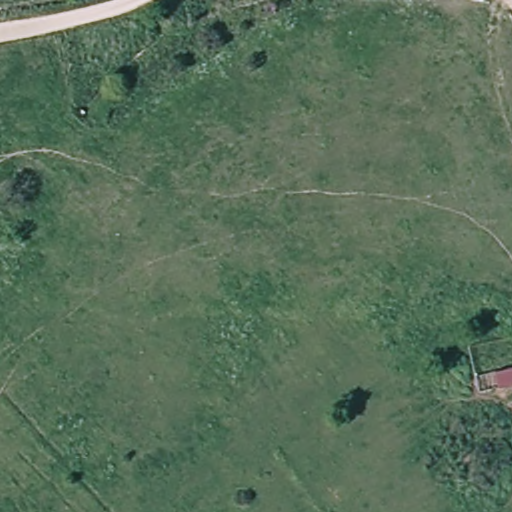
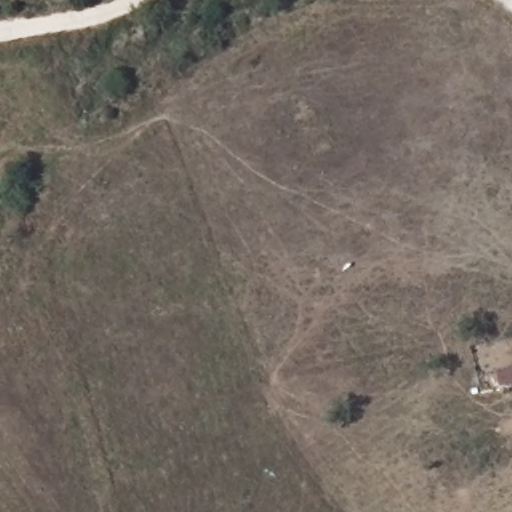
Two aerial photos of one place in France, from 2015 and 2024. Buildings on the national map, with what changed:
[]

